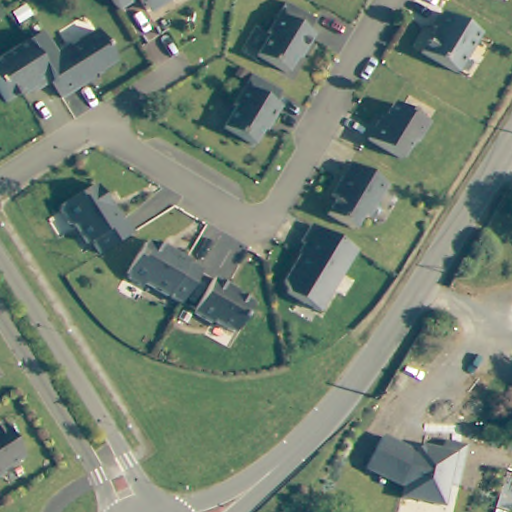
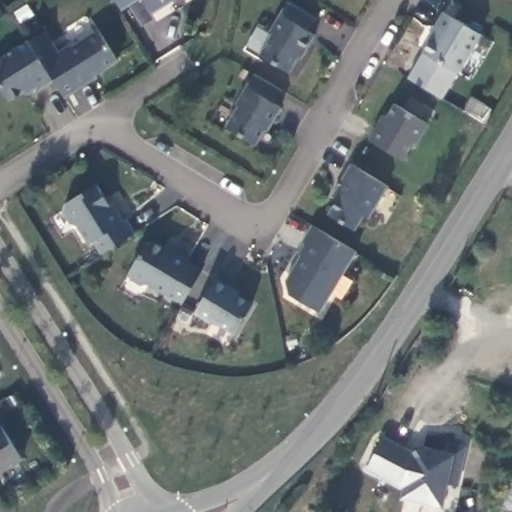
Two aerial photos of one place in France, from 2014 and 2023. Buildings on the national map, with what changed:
unchanged [(113,0),(130,0),(118,8),(113,0)]
unchanged [(155,7),(154,4),(147,9),(140,0),(167,0),(155,7)]
unchanged [(271,33),(268,32),(285,4),(314,21),(306,33),(312,37),(298,60),(295,58),(287,72),(258,54),(271,33)]
unchanged [(438,29),(435,27),(445,12),(481,35),(459,72),(424,52),(438,29)]
unchanged [(54,52),(68,43),(70,45),(95,28),(114,59),(89,77),(90,78),(77,86),(54,52)]
unchanged [(56,78),(41,89),(37,84),(13,100),(7,92),(0,97),(0,62),(32,40),(56,78)]
unchanged [(236,107),(233,106),(252,74),(280,91),(272,103),(279,108),(265,132),(262,130),(253,146),(224,127),(236,107)]
unchanged [(378,112),(381,114),(390,100),(424,121),(411,141),(407,139),(397,157),(364,137),(378,112)]
unchanged [(334,199),(329,195),(347,165),(384,187),(363,220),(358,217),(350,229),(324,214),(334,199)]
unchanged [(60,211),(62,204),(93,184),(120,222),(122,221),(132,235),(101,255),(92,242),(88,245),(75,227),(71,225),(60,211)]
unchanged [(286,278),(309,242),(304,239),(314,223),(357,250),(320,310),(289,291),(286,278)]
unchanged [(124,267),(140,239),(146,237),(166,248),(167,246),(184,255),(182,258),(196,265),(176,298),(142,278),(135,280),(124,273),(124,267)]
unchanged [(214,279),(238,293),(236,296),(252,305),(234,334),(213,321),(211,323),(193,313),(214,279)]
unchanged [(0,473),(0,432),(19,460),(0,473)]
unchanged [(415,454),(424,450),(447,454),(449,444),(468,448),(458,486),(449,484),(443,506),(405,500),(407,489),(402,488),(369,470),(386,439),(415,454)]

